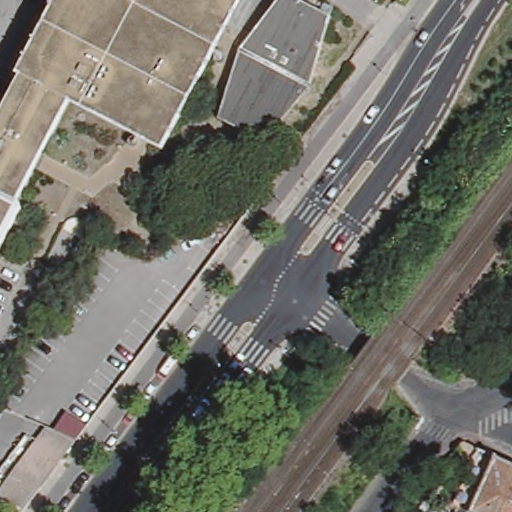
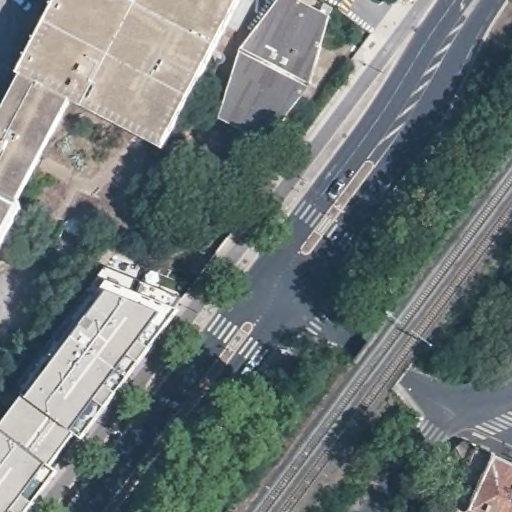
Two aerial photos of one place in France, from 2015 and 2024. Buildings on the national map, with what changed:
unchanged [(60,0),(251,0),(254,2),(173,151),(83,97),(30,196),(30,210),(0,266),(0,112),(25,66),(22,64),(60,0)]
unchanged [(290,0),(327,19),(308,90),(265,150),(216,122),(239,52),(278,0),(290,0)]
new [(184,300),(179,311),(31,512),(0,512),(0,404),(103,267),(184,300)]
demolished [(28,502),(0,490),(0,486),(48,421),(79,434),(28,502)]
unchanged [(512,463),(512,512),(468,512),(456,507),(480,449),(512,463)]

